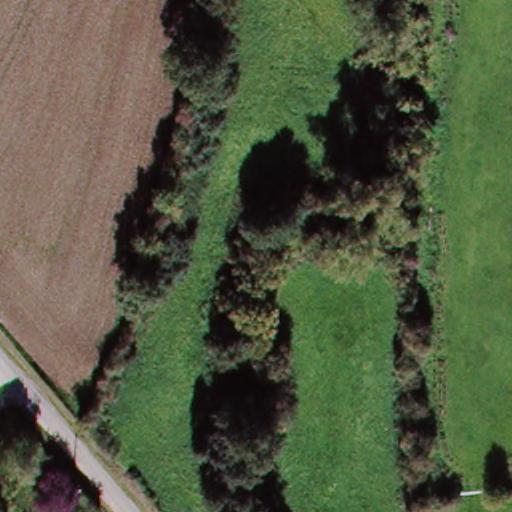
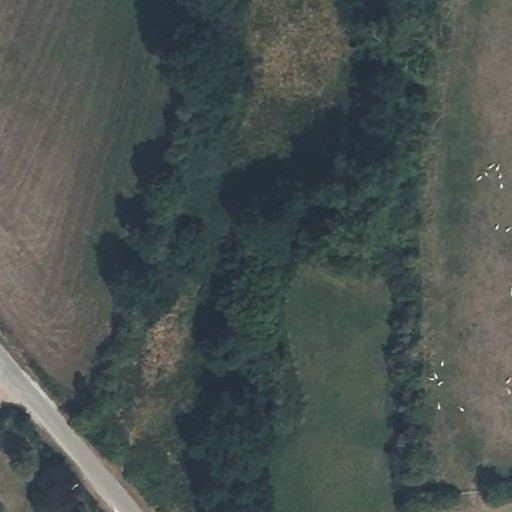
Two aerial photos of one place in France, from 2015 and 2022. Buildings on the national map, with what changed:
[]

